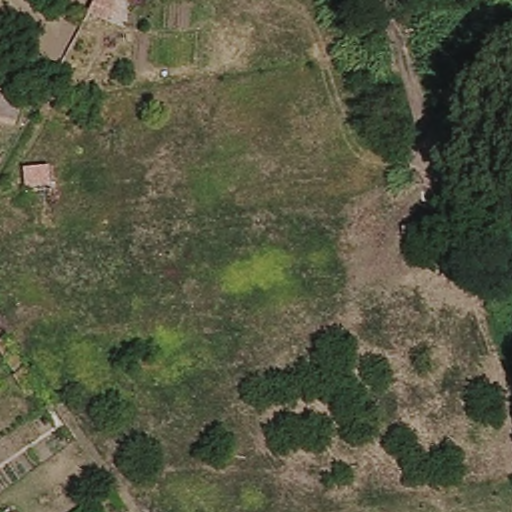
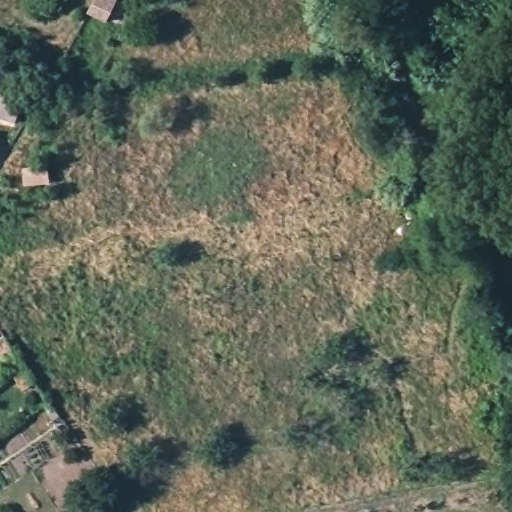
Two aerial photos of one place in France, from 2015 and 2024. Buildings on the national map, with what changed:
unchanged [(74,14),(77,9),(83,0),(105,0),(90,24),(74,14)]
unchanged [(0,97),(2,98),(20,101),(19,109),(16,129),(0,126),(0,97)]
unchanged [(20,189),(20,168),(45,165),(45,187),(20,189)]
unchanged [(408,232),(393,234),(392,223),(407,222),(408,232)]
unchanged [(0,350),(0,335),(6,344),(0,350)]

